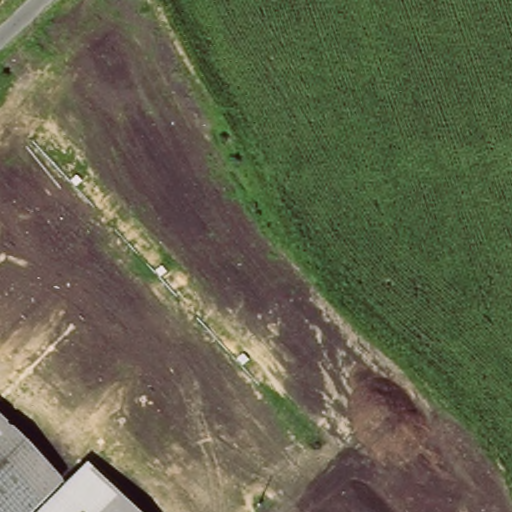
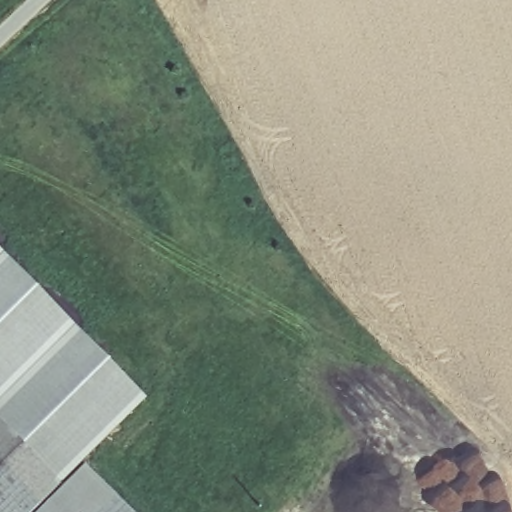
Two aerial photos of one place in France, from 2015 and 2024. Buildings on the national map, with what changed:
new [(0,425),(0,253),(146,400),(58,487),(0,425)]
unchanged [(0,512),(0,425),(73,502),(62,512),(0,512)]
unchanged [(62,491),(87,467),(130,512),(62,512),(73,502),(62,491)]

